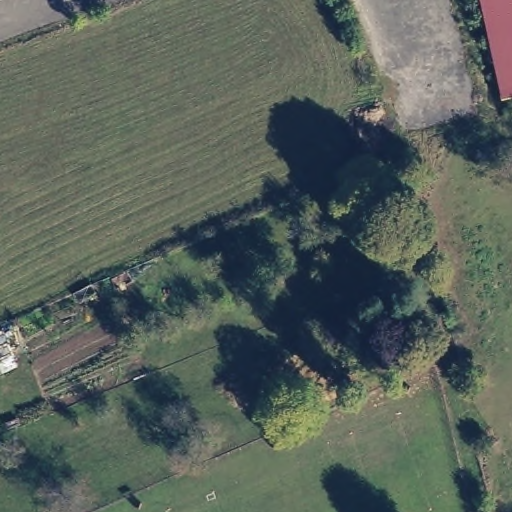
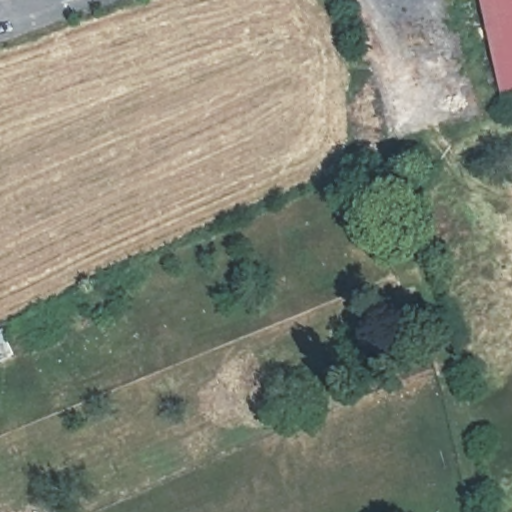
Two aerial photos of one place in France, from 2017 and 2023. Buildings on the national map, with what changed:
unchanged [(492,38),(481,0),(512,0),(512,34),(492,38)]
unchanged [(512,34),(512,89),(505,90),(492,38),(512,34)]

